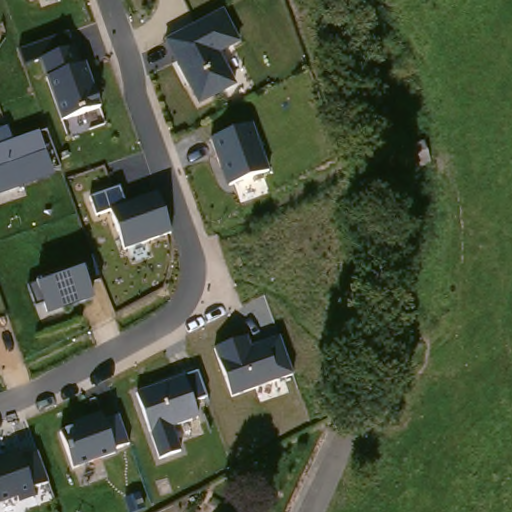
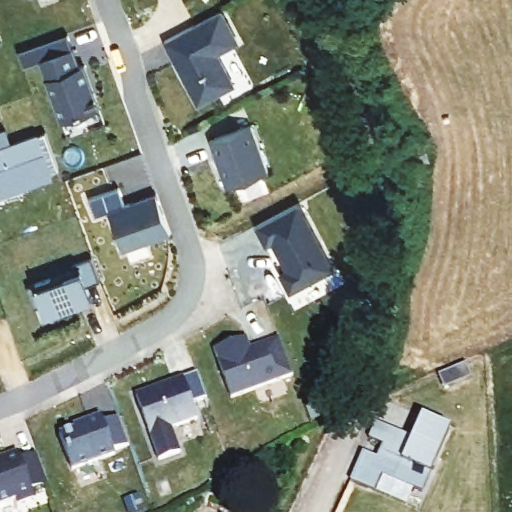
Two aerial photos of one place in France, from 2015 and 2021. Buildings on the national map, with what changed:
unchanged [(166,45),(221,13),(237,44),(217,55),(234,86),(198,106),(166,45)]
unchanged [(60,121),(46,80),(42,61),(71,50),(77,67),(85,66),(99,108),(60,121)]
unchanged [(211,141),(251,126),(267,172),(226,187),(211,141)]
unchanged [(5,129),(11,144),(47,131),(60,171),(51,173),(53,179),(0,198),(0,131),(5,129)]
unchanged [(122,252),(109,212),(94,217),(88,199),(118,188),(123,205),(156,195),(169,235),(122,252)]
new [(301,205),(336,270),(292,294),(283,275),(288,272),(291,261),(277,235),(265,242),(257,227),(301,205)]
unchanged [(45,320),(40,307),(34,310),(28,288),(34,286),(82,269),(92,263),(98,283),(88,290),(92,303),(45,320)]
unchanged [(247,338),(251,350),(279,339),(292,376),(232,398),(214,351),(247,338)]
unchanged [(137,395),(196,373),(205,399),(191,404),(196,420),(170,429),(179,452),(157,460),(137,395)]
unchanged [(71,468),(57,433),(71,429),(71,423),(100,414),(101,420),(117,418),(125,445),(111,449),(113,455),(71,468)]
new [(363,453),(377,459),(383,444),(368,438),(375,422),(412,438),(422,416),(450,429),(429,475),(422,494),(382,475),(372,494),(350,482),(363,453)]
unchanged [(16,452),(20,460),(37,455),(47,484),(32,490),(35,499),(19,505),(16,499),(0,505),(0,458),(16,452)]

